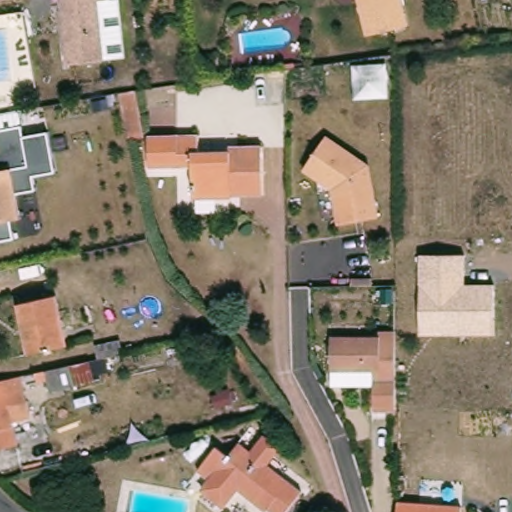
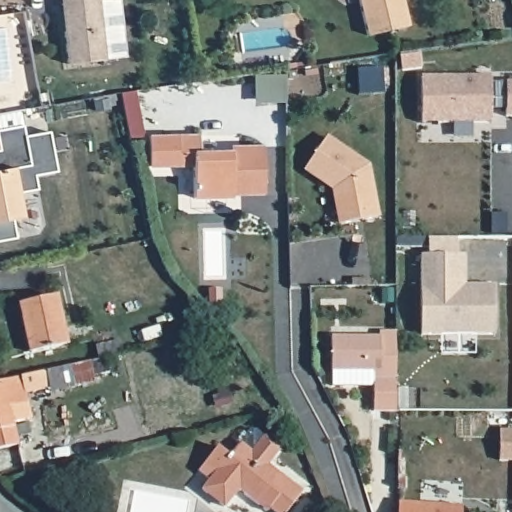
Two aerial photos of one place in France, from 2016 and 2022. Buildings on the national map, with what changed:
unchanged [(0,2),(0,0),(25,0),(26,1),(0,2)]
unchanged [(102,6),(109,65),(72,69),(68,36),(65,9),(64,0),(115,0),(116,5),(102,6)]
unchanged [(372,35),(363,0),(407,0),(413,25),(372,35)]
unchanged [(386,65),(387,84),(369,85),(367,67),(386,65)]
new [(512,80),(512,115),(504,116),(504,107),(489,107),(489,121),(420,122),(419,68),(488,67),(488,89),(504,89),(504,81),(512,80)]
unchanged [(148,137),(134,137),(124,92),(139,90),(148,137)]
unchanged [(24,124),(26,134),(51,131),(57,169),(35,172),(37,187),(19,191),(22,217),(14,220),(17,237),(0,240),(0,128),(24,124)]
unchanged [(267,194),(244,195),(244,190),(236,190),(236,197),(198,197),(197,166),(153,166),(153,136),(204,135),(204,152),(244,152),(244,147),(267,147),(267,194)]
unchanged [(331,136),(373,165),(382,217),(344,224),(337,188),(308,169),(331,136)]
unchanged [(421,256),(466,255),(465,285),(495,286),(495,334),(421,334),(421,256)]
unchanged [(71,345),(34,353),(24,303),(61,295),(71,345)]
unchanged [(400,391),(400,411),(378,411),(378,385),(336,385),(336,371),(336,336),(384,336),(384,331),(400,331),(400,391)]
unchanged [(127,353),(102,358),(100,345),(124,340),(127,353)]
unchanged [(36,417),(17,422),(23,444),(0,449),(0,381),(95,360),(99,380),(55,391),(52,380),(28,385),(31,401),(32,401),(36,417)]
unchanged [(292,482),(272,508),(258,498),(256,501),(228,479),(214,497),(192,480),(200,470),(187,460),(206,437),(218,447),(230,432),(242,442),(255,427),(270,438),(258,455),(280,471),(292,482)]
new [(512,429),(512,460),(499,460),(499,429),(512,429)]
unchanged [(402,503),(467,507),(466,512),(402,512),(402,503)]

